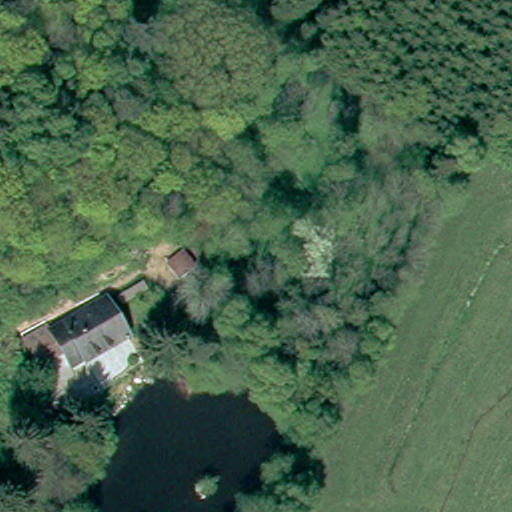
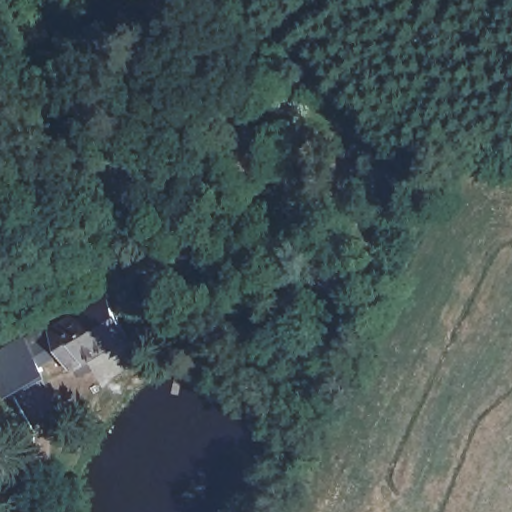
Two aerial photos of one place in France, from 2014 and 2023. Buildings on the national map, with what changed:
unchanged [(57,341),(52,331),(105,299),(127,335),(87,358),(84,357),(72,364),(57,341)]
new [(9,400),(0,384),(0,352),(25,336),(47,372),(9,400)]

